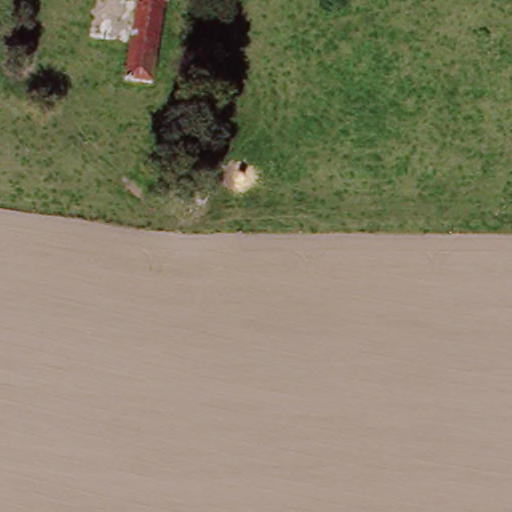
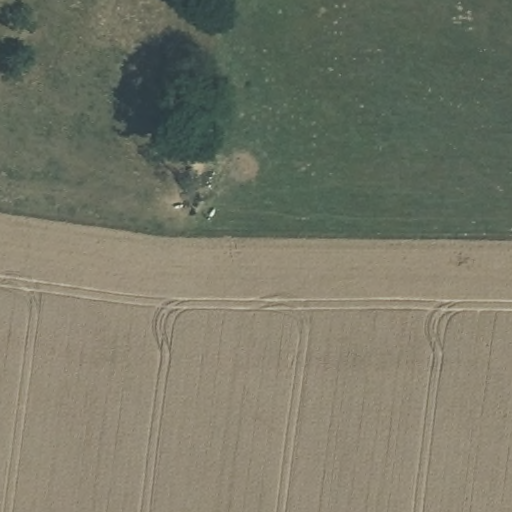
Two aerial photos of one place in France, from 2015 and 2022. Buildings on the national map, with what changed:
demolished [(121,92),(135,0),(167,0),(151,98),(121,92)]

